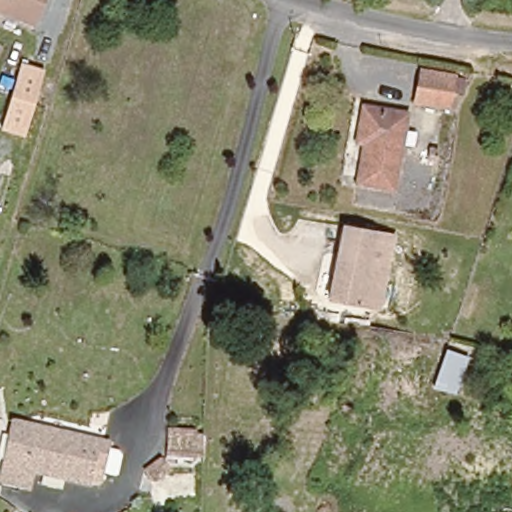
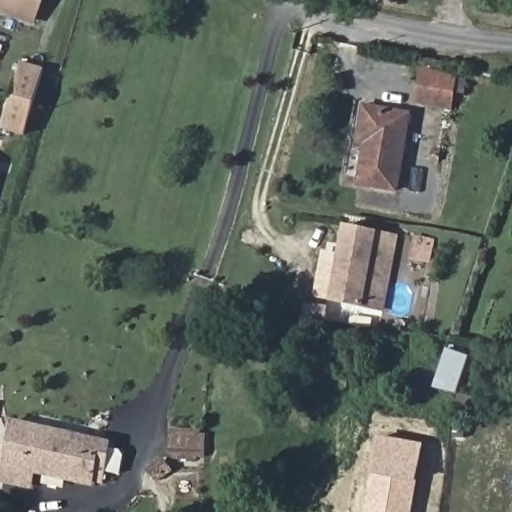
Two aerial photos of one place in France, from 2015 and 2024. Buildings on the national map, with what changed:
unchanged [(36,20),(0,5),(0,0),(44,0),(36,20)]
unchanged [(17,64),(40,72),(30,102),(19,134),(0,128),(0,115),(6,96),(17,64)]
unchanged [(449,108),(414,101),(419,75),(454,81),(449,108)]
unchanged [(408,118),(398,195),(361,190),(367,149),(360,148),(365,112),(408,118)]
unchanged [(381,306),(330,298),(342,226),(393,234),(381,306)]
demolished [(166,439),(163,409),(191,405),(195,434),(166,439)]
unchanged [(103,480),(91,478),(90,481),(31,466),(28,480),(2,474),(14,427),(17,418),(42,424),(113,440),(103,480)]
new [(169,457),(171,429),(203,430),(202,457),(169,457)]
new [(417,483),(412,512),(364,512),(371,475),(378,436),(424,444),(417,483)]

